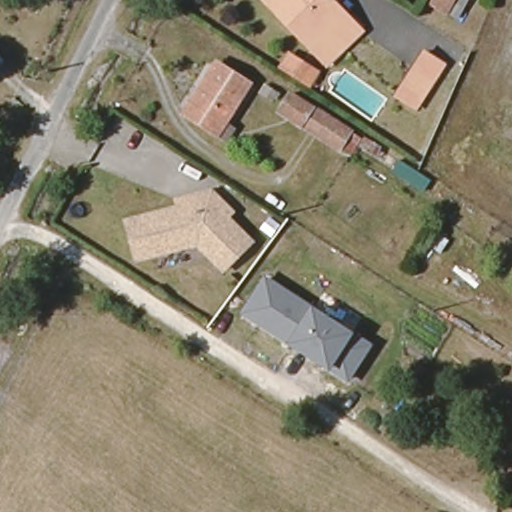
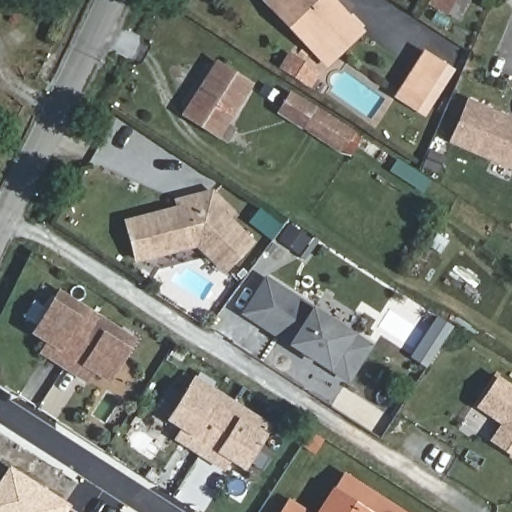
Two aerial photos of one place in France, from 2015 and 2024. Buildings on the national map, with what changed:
unchanged [(324,64),(265,3),(268,0),(327,0),(358,32),(324,64)]
unchanged [(430,3),(431,0),(466,0),(458,16),(430,3)]
unchanged [(442,67),(414,111),(393,98),(421,54),(442,67)]
unchanged [(249,84),(218,138),(181,117),(214,64),(249,84)]
unchanged [(352,134),(342,151),(283,114),(294,95),(352,134)]
new [(448,141),(467,97),(512,117),(512,169),(448,141)]
unchanged [(434,179),(426,194),(360,152),(369,136),(422,171),(434,179)]
unchanged [(230,214),(226,219),(249,244),(220,272),(194,246),(134,258),(126,223),(177,210),(185,217),(191,215),(191,200),(209,194),(230,214)]
unchanged [(312,305),(355,333),(374,344),(350,383),(330,371),(287,344),(241,314),(265,274),(312,305)]
new [(51,299),(58,288),(96,312),(63,368),(39,352),(46,343),(30,333),(51,299)]
new [(63,368),(96,312),(138,338),(131,348),(110,383),(96,374),(90,384),(63,368)]
new [(168,421),(189,384),(195,374),(234,400),(200,456),(174,439),(181,429),(168,421)]
new [(504,382),(512,387),(512,451),(499,443),(510,426),(485,409),(504,382)]
new [(200,456),(234,400),(273,424),(267,435),(245,471),(231,462),(225,472),(200,456)]
new [(0,478),(9,464),(71,504),(66,512),(0,512),(0,478)]
new [(332,488),(334,488),(344,472),(407,512),(315,512),(332,488)]
new [(290,499),(314,512),(281,512),(290,499)]

